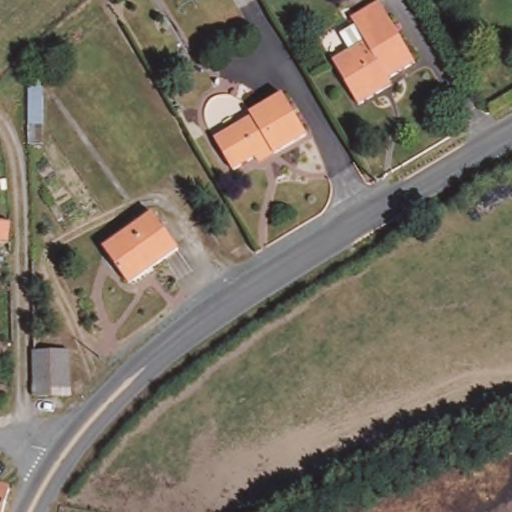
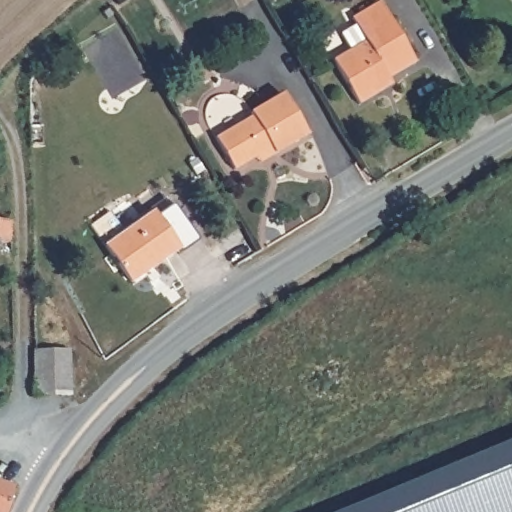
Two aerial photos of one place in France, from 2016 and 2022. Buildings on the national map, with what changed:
unchanged [(348,53),(341,41),(339,39),(353,29),(349,22),(375,5),(382,15),(414,64),(388,81),(392,87),(361,107),(332,64),(348,53)]
unchanged [(253,156),(229,171),(209,142),(245,118),(243,115),(275,93),(303,135),(272,155),(259,165),(253,156)]
unchanged [(152,215),(178,255),(127,288),(101,249),(152,215)]
unchanged [(8,222),(6,244),(0,243),(0,221),(8,222)]
unchanged [(71,400),(32,399),(31,341),(70,339),(71,400)]
new [(512,441),(512,512),(339,512),(512,441)]
unchanged [(9,490),(0,512),(0,488),(9,490)]

